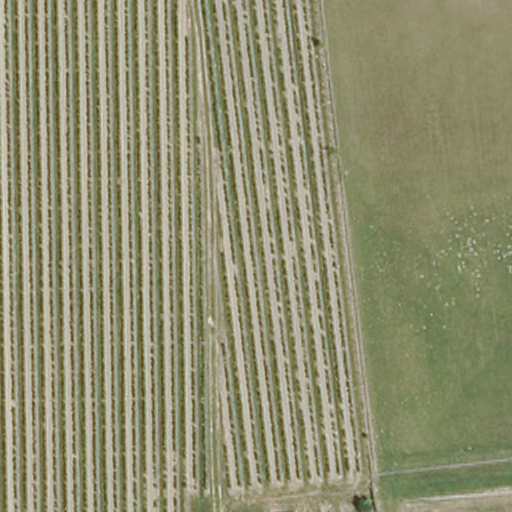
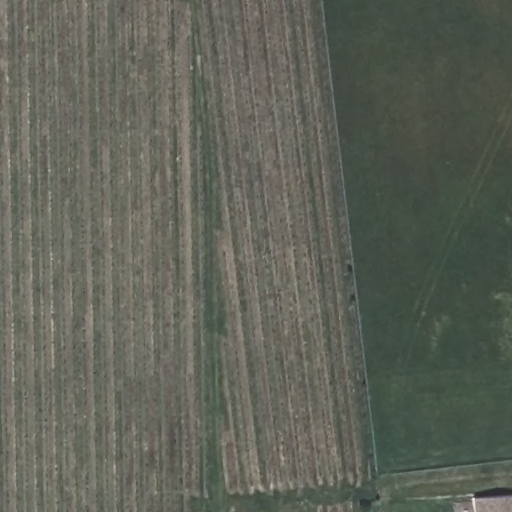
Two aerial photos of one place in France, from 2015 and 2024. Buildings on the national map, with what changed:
new [(512,494),(512,512),(473,512),(472,498),(512,494)]

